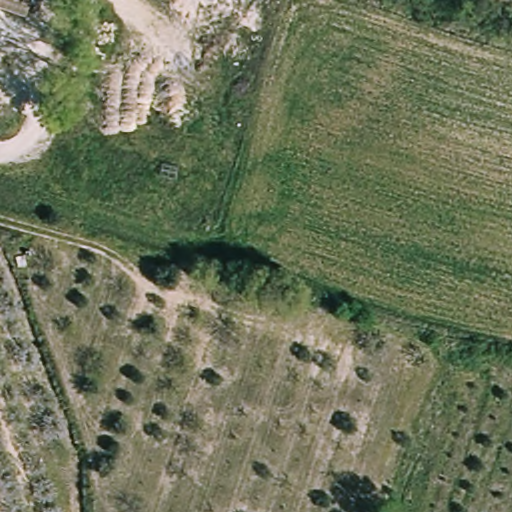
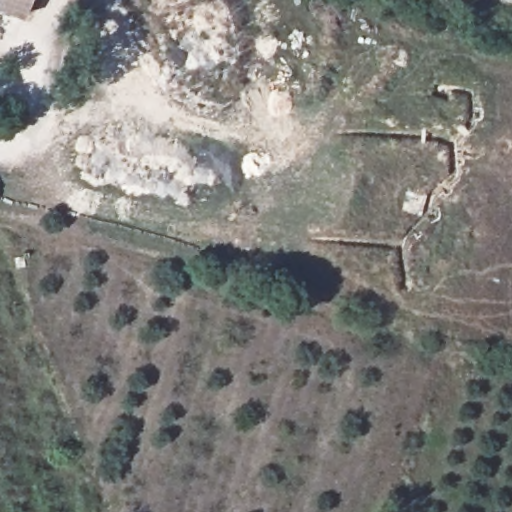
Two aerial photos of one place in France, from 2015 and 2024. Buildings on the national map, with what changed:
unchanged [(0,9),(0,0),(24,0),(18,16),(0,9)]

